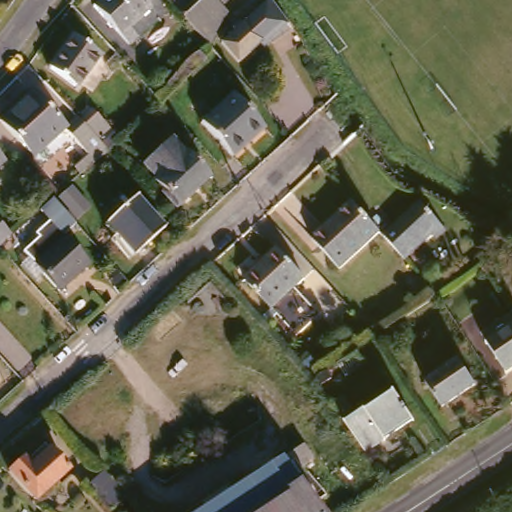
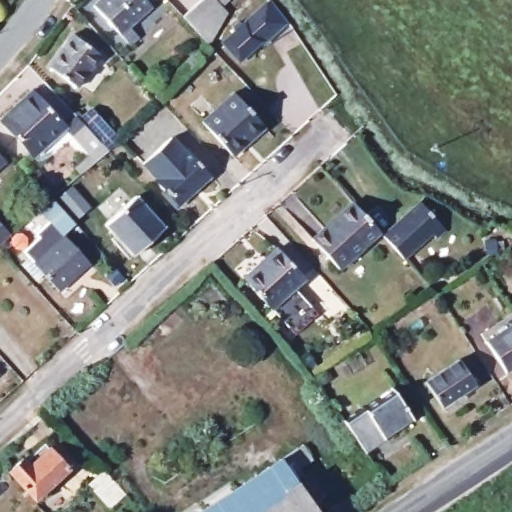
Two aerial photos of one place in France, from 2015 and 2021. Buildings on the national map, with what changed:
unchanged [(151,0),(148,2),(151,5),(129,26),(137,36),(129,44),(92,4),(96,0),(151,0)]
unchanged [(217,0),(224,8),(206,39),(182,12),(195,0),(217,0)]
unchanged [(225,35),(224,30),(229,25),(234,27),(260,4),(277,27),(254,48),(251,46),(230,65),(212,46),(225,35)]
unchanged [(77,30),(103,49),(80,82),(54,62),(77,30)]
unchanged [(35,154),(1,116),(32,87),(66,125),(77,113),(90,102),(107,122),(96,134),(107,145),(93,157),(65,126),(35,154)]
unchanged [(262,125),(246,140),(244,137),(227,152),(197,119),(230,90),(262,125)]
unchanged [(154,177),(155,175),(142,160),(170,135),(182,149),(185,148),(208,174),(196,185),(192,183),(175,200),(154,177)]
unchanged [(2,162),(0,163),(0,159),(2,162)]
unchanged [(70,182),(89,202),(75,214),(57,194),(70,182)]
unchanged [(25,264),(30,258),(21,247),(36,234),(32,231),(49,216),(39,206),(52,194),(73,218),(61,230),(62,231),(85,256),(55,286),(41,271),(35,276),(25,264)]
unchanged [(161,226),(131,253),(112,232),(104,222),(135,194),(161,226)]
unchanged [(417,196),(446,227),(435,237),(432,232),(403,257),(377,230),(417,196)]
unchanged [(376,227),(335,263),(307,233),(347,197),(376,227)]
unchanged [(11,237),(0,246),(0,225),(11,237)]
unchanged [(275,242),(302,272),(288,285),(311,310),(287,330),(265,304),(237,273),(275,242)]
unchanged [(512,366),(503,371),(482,339),(512,320),(512,366)]
unchanged [(460,355),(476,381),(442,402),(426,377),(460,355)]
unchanged [(419,420),(389,439),(391,441),(370,455),(343,417),(365,402),(366,404),(396,385),(419,420)]
unchanged [(22,461),(40,443),(46,448),(65,470),(32,501),(6,472),(20,458),(22,461)]
unchanged [(293,445),(306,463),(294,471),(297,475),(304,471),(321,494),(309,502),(316,512),(190,512),(293,445)]
unchanged [(118,493),(102,507),(82,485),(97,470),(118,493)]

